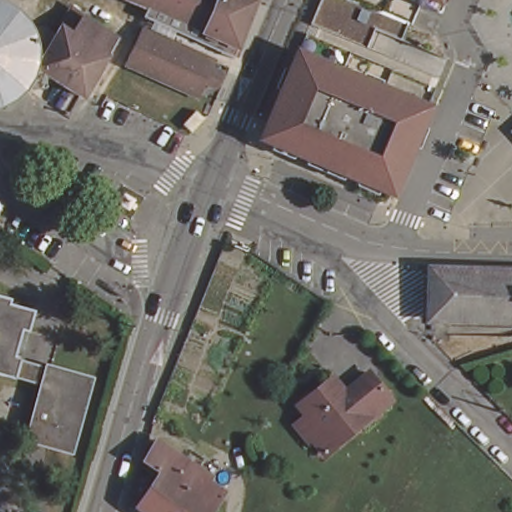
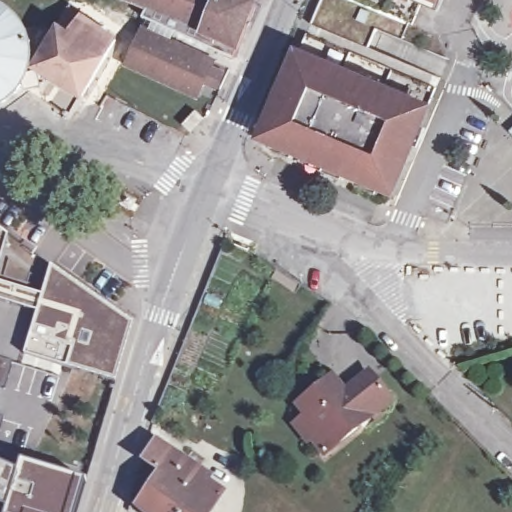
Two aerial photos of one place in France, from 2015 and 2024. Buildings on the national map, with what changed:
unchanged [(150,12),(153,3),(143,0),(256,0),(243,42),(238,52),(237,55),(224,49),(226,46),(219,44),(183,28),(179,34),(147,19),(150,12)]
unchanged [(436,14),(404,0),(446,0),(443,7),(436,14)]
unchanged [(47,57),(43,64),(38,75),(33,72),(32,77),(29,83),(21,93),(12,102),(0,108),(0,109),(0,8),(9,12),(18,19),(24,27),(29,36),(48,32),(58,38),(56,41),(47,57)]
unchanged [(32,77),(33,72),(38,75),(43,64),(47,57),(56,41),(58,38),(71,13),(90,27),(91,28),(115,46),(113,51),(95,83),(84,102),(55,82),(44,86),(46,92),(32,97),(28,95),(33,86),(29,83),(32,77)]
unchanged [(128,63),(133,52),(143,26),(214,55),(213,61),(224,66),(217,81),(205,76),(203,83),(198,92),(128,63)]
unchanged [(431,111),(396,197),(266,144),(300,52),(431,111)]
new [(3,231),(0,247),(0,229),(3,231)]
new [(38,294),(51,263),(128,322),(112,382),(19,349),(34,312),(0,298),(0,280),(38,294)]
unchanged [(512,323),(427,321),(429,271),(512,273),(512,323)]
demolished [(20,363),(48,371),(49,367),(95,382),(73,449),(60,444),(59,449),(28,439),(43,386),(15,377),(14,380),(0,376),(0,296),(13,300),(12,305),(37,313),(31,332),(25,330),(17,356),(22,358),(20,363)]
new [(3,387),(0,386),(0,358),(13,361),(3,387)]
unchanged [(302,426),(314,416),(305,406),(334,383),(340,378),(353,394),(376,374),(399,402),(331,455),(318,438),(314,441),(302,426)]
new [(0,424),(0,416),(2,416),(0,424)]
unchanged [(225,496),(217,512),(150,512),(144,507),(165,474),(150,464),(161,442),(211,476),(206,483),(225,496)]
new [(6,509),(0,507),(0,466),(17,473),(21,463),(75,479),(83,481),(75,512),(6,512),(6,509)]

